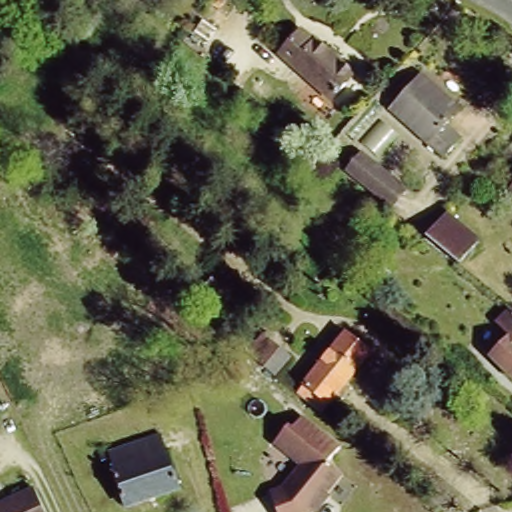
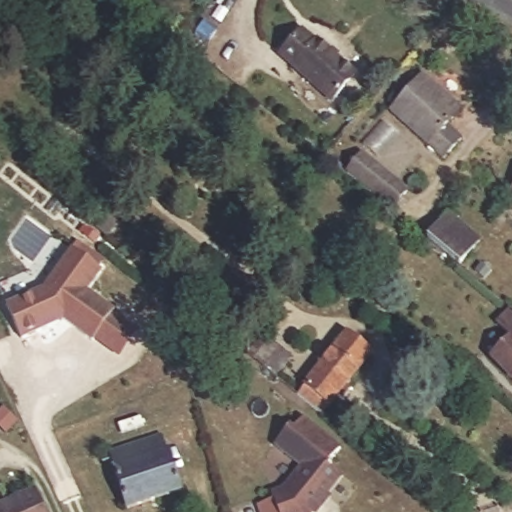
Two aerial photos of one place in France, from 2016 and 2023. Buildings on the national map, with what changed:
unchanged [(275,48),(295,24),(320,46),(323,44),(360,78),(340,101),(275,48)]
unchanged [(392,112),(422,78),(462,112),(447,128),(461,140),(445,159),(392,112)]
unchanged [(395,208),(349,172),(365,151),(410,188),(395,208)]
unchanged [(429,236),(453,211),(483,240),(462,262),(429,236)]
new [(41,286),(69,248),(100,269),(85,289),(112,308),(89,339),(60,318),(19,337),(4,303),(41,286)]
unchanged [(510,338),(498,327),(512,313),(512,377),(491,357),(510,338)]
unchanged [(292,353),(275,373),(252,355),(269,334),(292,353)]
unchanged [(351,335),(377,356),(326,416),(301,395),(351,335)]
unchanged [(295,426),(304,416),(345,449),(333,463),(345,473),(314,512),(282,512),(275,489),(285,487),(304,464),(277,442),(292,423),(295,426)]
unchanged [(164,434),(182,489),(129,506),(112,460),(104,463),(102,456),(164,434)]
unchanged [(32,482),(47,512),(0,512),(0,498),(32,482)]

